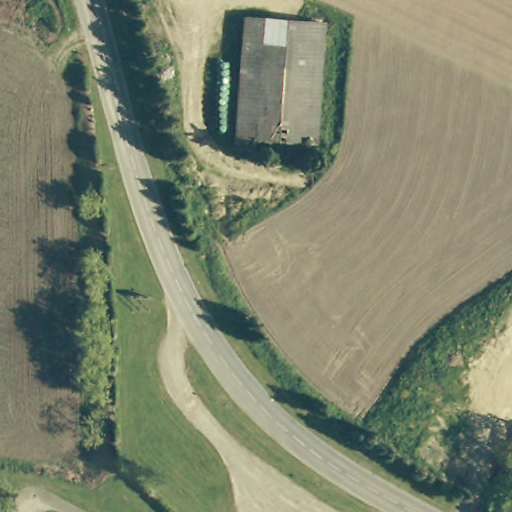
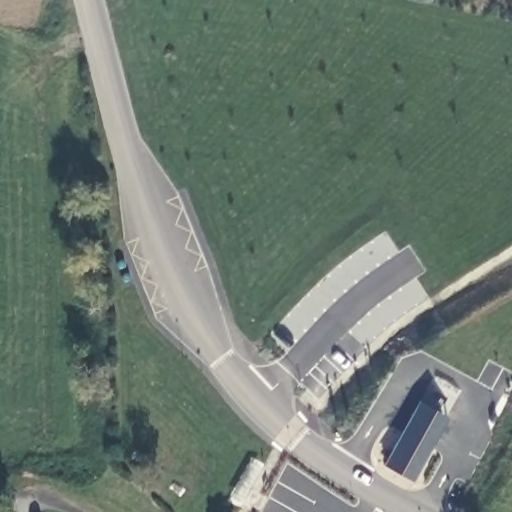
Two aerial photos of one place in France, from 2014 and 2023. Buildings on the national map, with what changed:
demolished [(314,142),(245,135),(244,145),(234,144),(247,15),(327,23),(314,142)]
new [(416,481),(384,465),(418,399),(449,414),(416,481)]

